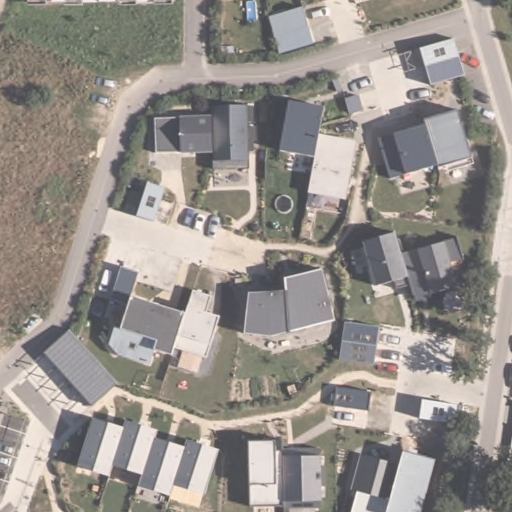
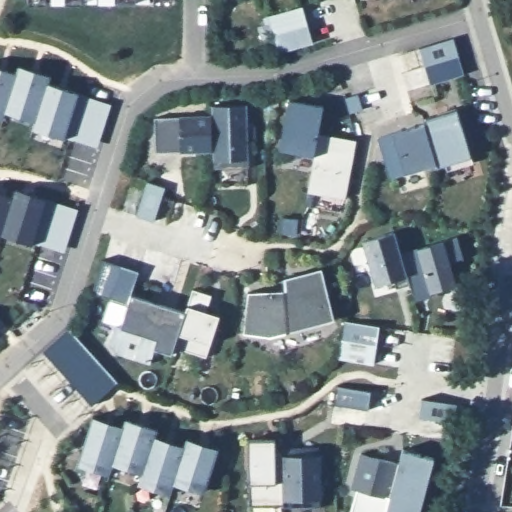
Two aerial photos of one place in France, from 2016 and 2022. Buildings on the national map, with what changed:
unchanged [(30,4),(30,0),(174,0),(174,4),(30,4)]
unchanged [(279,54),(266,16),(302,4),(314,45),(279,54)]
unchanged [(431,83),(421,49),(455,39),(465,74),(431,83)]
new [(32,129),(34,122),(5,114),(3,121),(0,120),(0,69),(17,74),(20,65),(50,75),(47,85),(78,94),(65,139),(32,129)]
unchanged [(278,149),(290,99),(325,105),(320,134),(315,155),(278,149)]
unchanged [(213,116),(212,104),(247,105),(248,157),(247,169),(215,171),(212,153),(213,116)]
unchanged [(377,136),(457,111),(470,157),(388,182),(377,136)]
unchanged [(156,154),(156,118),(213,116),(212,153),(156,154)]
unchanged [(320,134),(356,141),(347,199),(307,194),(320,134)]
new [(147,183),(165,188),(155,222),(136,216),(147,183)]
new [(76,210),(62,254),(31,245),(1,235),(0,242),(0,191),(13,195),(15,189),(45,199),(76,210)]
unchanged [(393,231),(407,274),(372,285),(362,241),(393,231)]
unchanged [(407,274),(399,249),(413,247),(457,234),(463,259),(450,263),(455,285),(435,294),(416,299),(407,274)]
unchanged [(202,356),(196,372),(177,366),(181,349),(174,347),(171,352),(155,349),(150,363),(117,356),(107,344),(114,324),(122,325),(129,303),(110,297),(120,265),(137,272),(130,295),(184,312),(186,304),(191,289),(212,295),(207,312),(220,315),(212,342),(207,356),(202,356)]
unchanged [(285,288),(285,279),(322,271),(333,318),(268,335),(245,334),(249,292),(285,288)]
unchanged [(339,361),(345,322),(377,325),(373,364),(339,361)]
unchanged [(93,402),(46,350),(70,329),(117,382),(93,402)]
new [(336,387),(371,392),(368,411),(334,406),(336,387)]
new [(422,399),(456,404),(453,423),(419,418),(422,399)]
unchanged [(171,494),(138,485),(140,473),(113,465),(110,475),(76,464),(94,417),(120,426),(124,418),(157,428),(155,436),(181,444),(186,438),(221,448),(205,492),(174,483),(171,494)]
unchanged [(314,509),(314,512),(290,512),(290,509),(285,510),(283,503),(250,504),(249,483),(250,439),(273,439),(283,439),(284,456),(320,456),(320,497),(320,509),(314,509)]
unchanged [(398,468),(403,451),(434,459),(420,512),(385,512),(398,468)]
unchanged [(398,468),(385,512),(352,512),(366,456),(398,468)]

